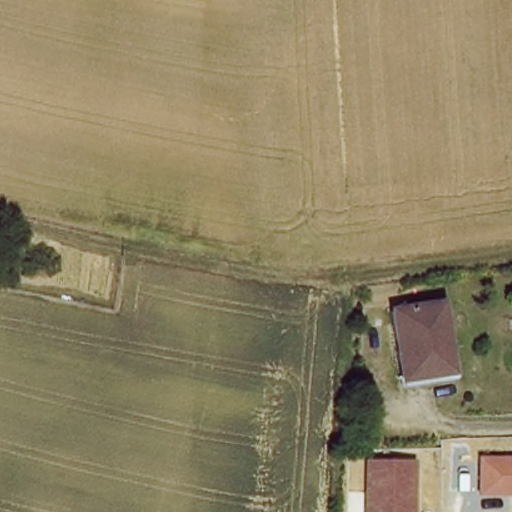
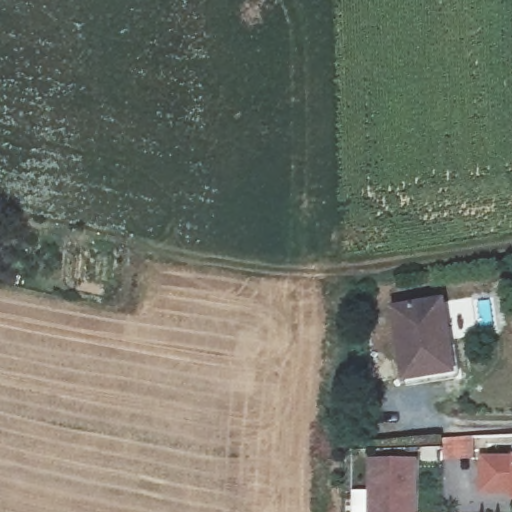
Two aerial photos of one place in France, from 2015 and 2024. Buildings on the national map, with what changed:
unchanged [(397,311),(452,312),(453,384),(397,385),(397,311)]
unchanged [(512,454),(512,494),(476,493),(478,453),(512,454)]
unchanged [(417,512),(366,512),(369,459),(417,459),(417,512)]

